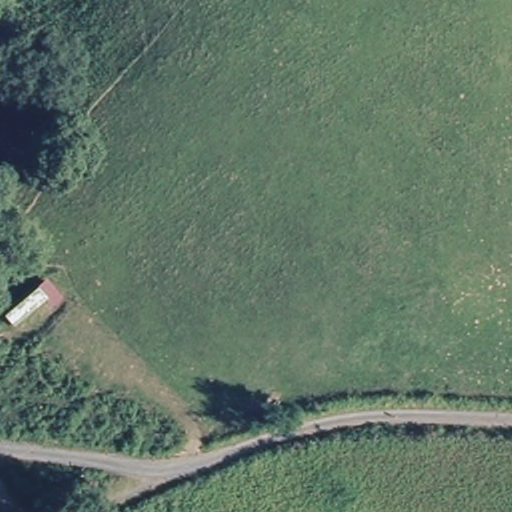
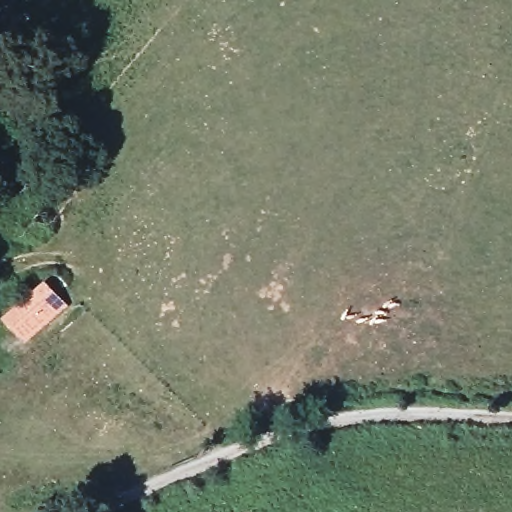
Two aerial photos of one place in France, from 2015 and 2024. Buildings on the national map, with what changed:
new [(69,304),(25,342),(3,316),(46,280),(69,304)]

